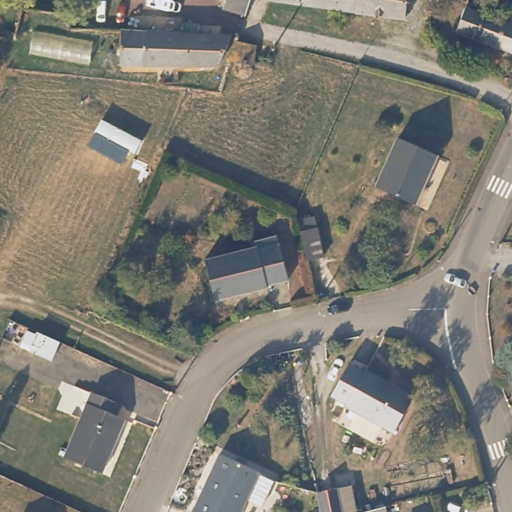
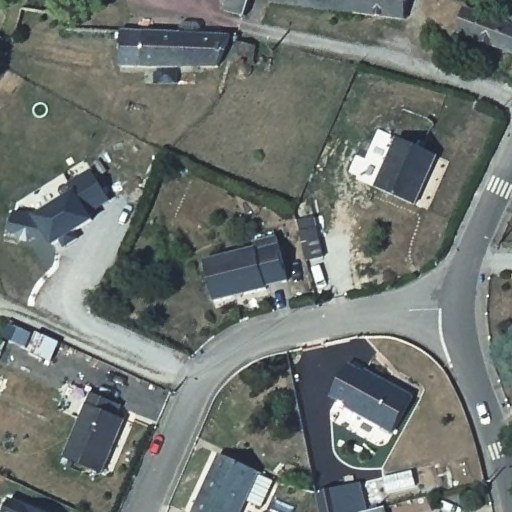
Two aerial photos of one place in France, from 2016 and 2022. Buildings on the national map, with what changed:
unchanged [(244,10),(222,5),(223,0),(247,0),(244,10)]
unchanged [(401,19),(328,7),(311,5),(289,1),(283,0),(402,0),(401,19)]
unchanged [(506,44),(484,36),(464,29),(472,6),(492,13),(512,21),(512,46),(506,44)]
unchanged [(199,21),(199,28),(225,31),(219,67),(119,64),(120,25),(179,27),(178,19),(199,21)]
unchanged [(253,44),(250,63),(229,59),(234,40),(253,44)]
unchanged [(436,152),(414,204),(371,187),(393,134),(436,152)]
new [(63,245),(59,239),(51,243),(49,239),(32,235),(26,239),(19,237),(16,231),(7,228),(12,209),(34,215),(73,192),(68,184),(90,170),(108,199),(86,212),(90,219),(72,231),(76,237),(63,245)]
unchanged [(311,259),(304,230),(301,219),(302,219),(319,215),(321,226),(328,254),(311,259)]
unchanged [(288,279),(265,284),(265,287),(214,299),(202,255),(253,243),(253,240),(277,235),(288,279)]
unchanged [(44,329),(67,339),(59,358),(36,348),(44,329)]
unchanged [(361,368),(363,365),(410,390),(391,429),(339,404),(340,398),(327,392),(344,358),(361,368)]
unchanged [(114,402),(111,412),(124,418),(100,474),(62,458),(90,391),(114,402)]
unchanged [(250,472),(264,477),(252,508),(236,502),(231,512),(189,512),(190,510),(187,509),(213,452),(252,468),(250,472)]
unchanged [(325,512),(319,490),(351,482),(361,511),(355,512),(325,512)]
unchanged [(387,512),(355,512),(361,511),(385,504),(387,512)]

